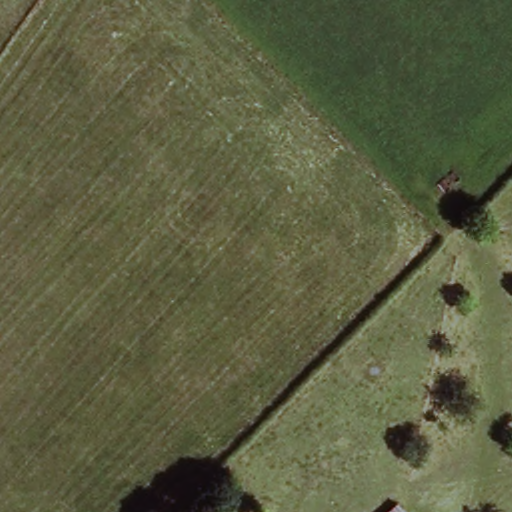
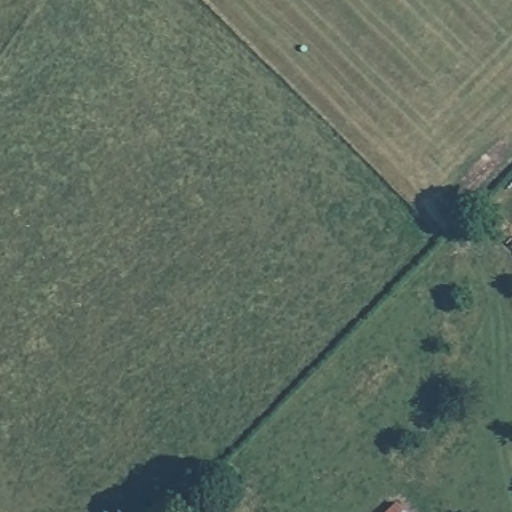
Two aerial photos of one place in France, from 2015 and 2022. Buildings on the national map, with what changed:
unchanged [(396,505),(403,512),(389,512),(396,505)]

